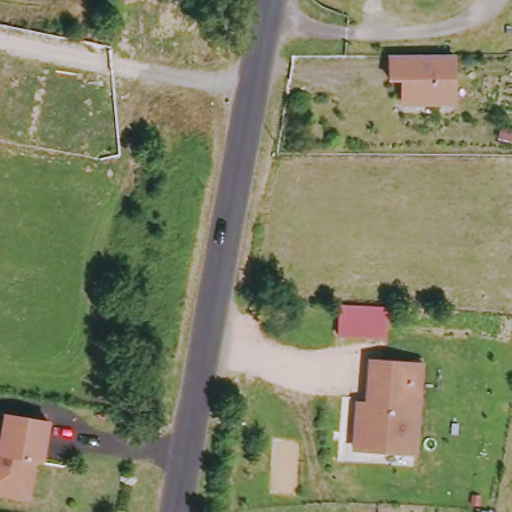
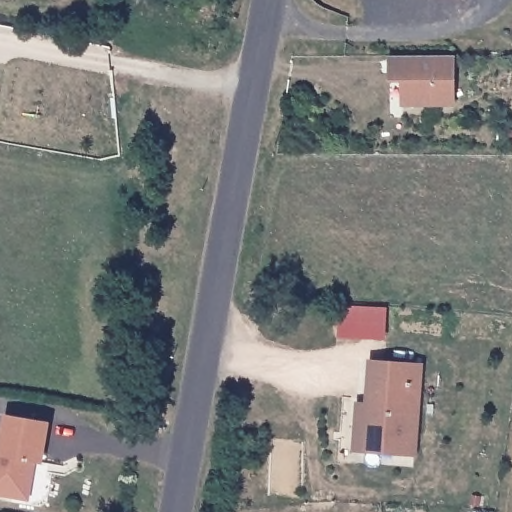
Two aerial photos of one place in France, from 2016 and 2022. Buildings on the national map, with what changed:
unchanged [(457,103),(407,104),(406,81),(394,81),(394,75),(393,56),(456,55),(457,103)]
unchanged [(361,409),(371,409),(373,365),(423,367),(419,456),(369,454),(359,454),(361,409)]
unchanged [(40,468),(33,467),(26,503),(0,499),(0,449),(6,419),(48,427),(40,468)]

